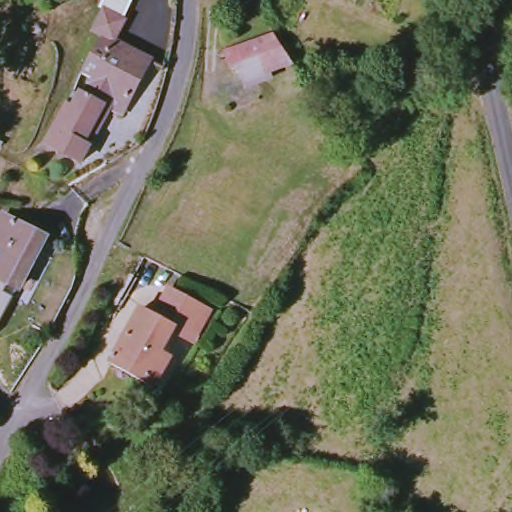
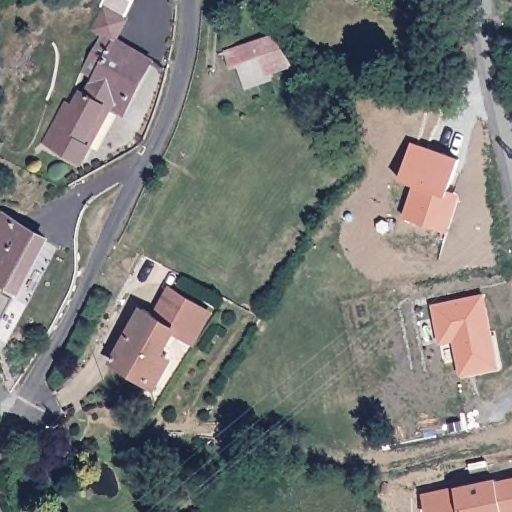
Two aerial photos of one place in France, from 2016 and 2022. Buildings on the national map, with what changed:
unchanged [(85,74),(105,35),(97,30),(109,8),(130,18),(119,42),(99,80),(85,74)]
unchanged [(295,67),(274,74),(275,79),(250,88),(242,66),(232,68),(227,55),(278,39),(295,67)]
unchanged [(99,80),(119,42),(154,59),(125,117),(107,108),(90,99),(99,80)]
unchanged [(84,95),(90,99),(107,108),(88,143),(95,146),(85,163),(57,149),(84,95)]
new [(410,143),(460,159),(449,194),(460,197),(449,230),(406,217),(417,184),(400,179),(410,143)]
unchanged [(0,224),(4,217),(44,238),(31,264),(19,291),(0,281),(0,224)]
unchanged [(109,352),(139,303),(157,313),(173,286),(205,305),(187,337),(172,328),(160,348),(163,350),(147,376),(109,352)]
new [(483,295),(497,366),(462,373),(454,339),(440,343),(432,307),(483,295)]
new [(495,483),(512,479),(512,512),(426,512),(422,495),(495,479),(495,483)]

